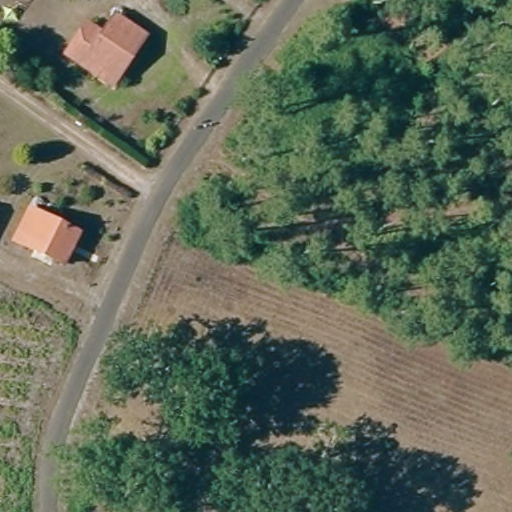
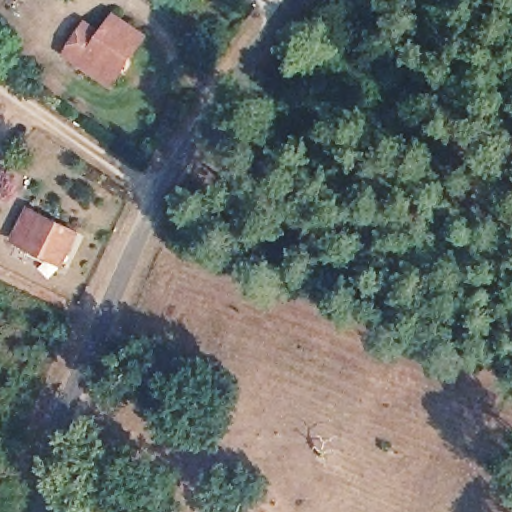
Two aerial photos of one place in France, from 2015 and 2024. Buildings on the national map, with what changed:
unchanged [(66,58),(83,30),(100,41),(113,17),(146,36),(116,88),(95,76),(83,69),(66,58)]
unchanged [(14,243),(34,204),(81,227),(64,266),(14,243)]

